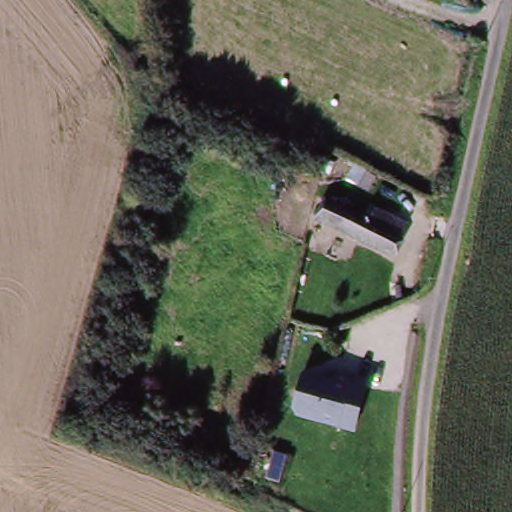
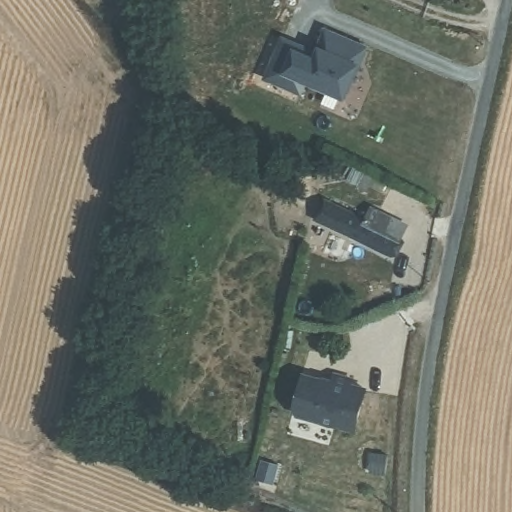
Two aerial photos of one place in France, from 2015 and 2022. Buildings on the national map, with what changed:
new [(365,49),(343,99),(306,83),(301,95),(266,80),(280,46),(283,40),(317,54),(326,32),(365,49)]
unchanged [(357,187),(366,174),(376,181),(366,194),(357,187)]
unchanged [(405,234),(391,262),(317,226),(325,209),(365,228),(370,217),(405,234)]
unchanged [(301,376),(370,393),(355,437),(295,419),(291,411),(301,376)]

